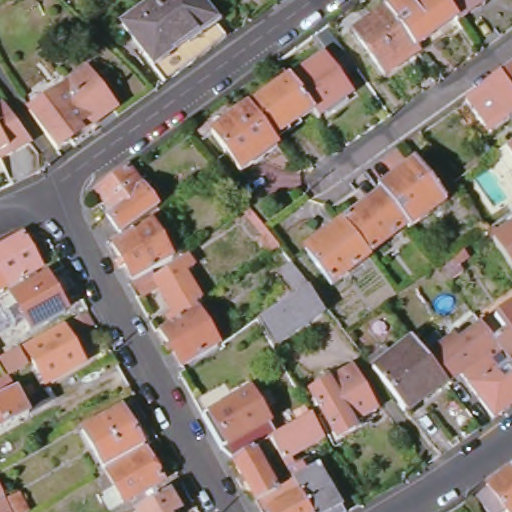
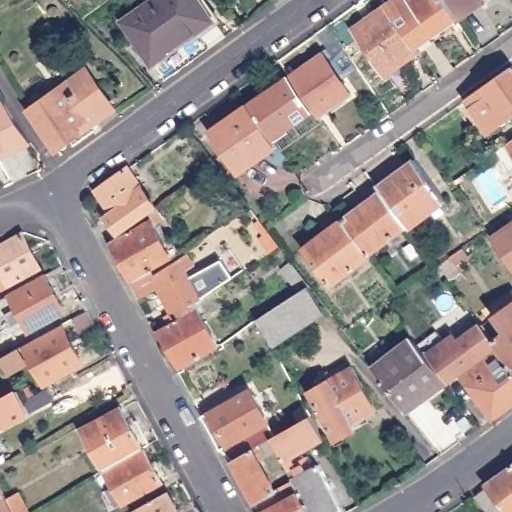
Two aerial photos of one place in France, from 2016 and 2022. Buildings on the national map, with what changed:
unchanged [(142,0),(199,0),(222,32),(161,77),(118,16),(142,0)]
unchanged [(385,7),(395,0),(442,0),(455,19),(413,48),(385,7)]
unchanged [(482,6),(480,4),(456,21),(456,20),(455,19),(442,0),(490,0),(482,6)]
unchanged [(352,30),(385,7),(413,48),(416,52),(385,74),(352,30)]
unchanged [(325,26),(342,50),(331,57),(314,34),(325,26)]
unchanged [(350,95),(317,118),(313,113),(288,78),(322,55),(350,95)]
unchanged [(466,99),(465,99),(512,66),(512,118),(490,134),(466,99)]
unchanged [(110,105),(90,119),(96,126),(59,151),(30,110),(85,71),(110,105)]
unchanged [(247,107),(288,78),(313,113),(271,141),(247,107)]
unchanged [(5,102),(32,142),(0,159),(0,105),(5,102)]
unchanged [(210,132),(247,107),(271,141),(275,148),(238,173),(210,132)]
unchanged [(512,149),(511,149),(512,148),(512,149)]
unchanged [(445,201),(408,228),(406,227),(406,226),(397,215),(382,194),(376,187),(415,159),(445,201)]
unchanged [(124,236),(110,217),(115,214),(99,194),(131,170),(160,211),(124,236)]
unchanged [(354,238),(340,220),(365,202),(367,205),(382,194),(397,215),(406,226),(366,255),(354,238)]
unchanged [(262,236),(242,211),(247,207),(261,226),(278,247),(268,253),(258,239),(262,236)]
unchanged [(361,269),(349,278),(346,274),(331,285),(302,247),(340,220),(354,238),(366,255),(368,257),(358,264),(361,269)]
unchanged [(154,221),(177,259),(138,282),(116,242),(154,221)]
unchanged [(496,242),(512,232),(512,265),(508,259),(496,242)]
unchanged [(27,234),(45,267),(3,291),(0,286),(0,248),(27,234)]
unchanged [(461,249),(467,257),(455,265),(450,257),(461,249)]
unchanged [(178,313),(158,277),(191,255),(199,266),(190,272),(206,301),(199,305),(202,310),(175,325),(171,317),(178,313)]
unchanged [(36,330),(30,319),(20,325),(15,315),(10,318),(2,303),(51,276),(70,310),(36,330)]
unchanged [(275,347),(261,320),(311,287),(327,313),(275,347)]
unchanged [(512,301),(512,367),(491,340),(503,331),(492,315),(512,301)]
unchanged [(224,347),(185,368),(165,331),(175,325),(202,310),(224,347)]
unchanged [(460,373),(446,383),(430,363),(416,345),(435,332),(447,347),(455,341),(447,329),(470,312),(474,317),(491,340),(512,367),(512,404),(493,417),(460,373)]
unchanged [(72,320),(85,313),(91,324),(78,331),(72,320)]
unchanged [(62,334),(81,369),(44,389),(25,355),(62,334)]
unchanged [(373,369),(411,339),(416,345),(430,363),(446,383),(408,413),(373,369)]
unchanged [(356,368),(380,411),(357,424),(360,430),(336,443),(322,419),(327,416),(313,391),(356,368)]
unchanged [(10,382),(17,393),(18,397),(23,406),(49,392),(55,403),(0,435),(0,387),(10,382)]
unchanged [(275,425),(262,431),(268,443),(265,446),(237,462),(226,451),(207,417),(255,391),(275,425)]
unchanged [(82,431),(121,409),(130,425),(137,422),(150,445),(143,449),(104,472),(82,431)]
unchanged [(310,458),(316,469),(323,466),(330,476),(349,512),(315,512),(298,482),(282,453),(275,439),(315,416),(327,439),(293,457),(298,465),(310,458)]
unchanged [(280,493),(272,497),(260,503),(237,462),(265,446),(268,443),(275,439),(282,453),(265,463),(280,493)]
unchanged [(123,505),(104,472),(143,449),(163,482),(123,505)]
unchanged [(507,512),(493,512),(482,497),(493,489),(491,485),(491,484),(512,470),(512,512),(511,512),(510,511),(507,512)]
unchanged [(266,512),(260,503),(272,497),(280,493),(298,482),(315,512),(266,512)]
unchanged [(8,502),(12,499),(23,494),(34,512),(0,512),(0,485),(8,502)]
unchanged [(180,511),(178,512),(137,512),(135,510),(168,492),(180,511)]

